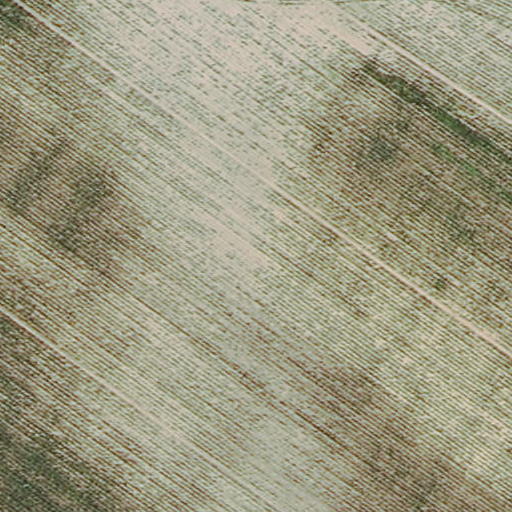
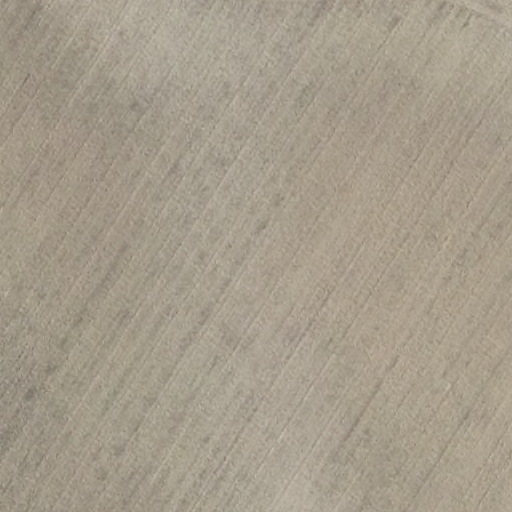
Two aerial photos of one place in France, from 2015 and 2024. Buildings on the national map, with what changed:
[]

